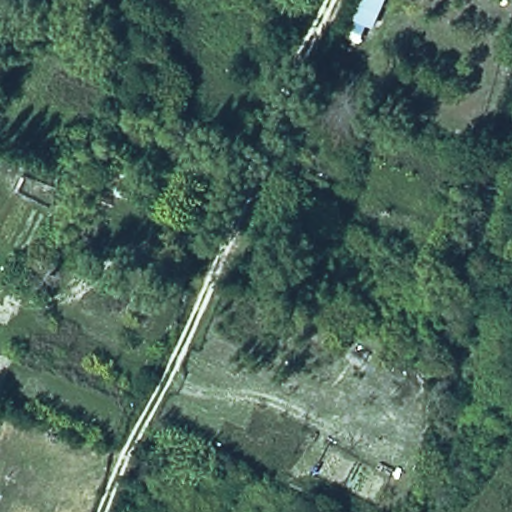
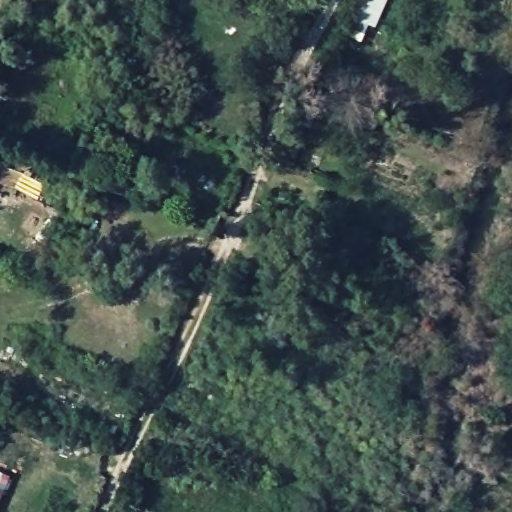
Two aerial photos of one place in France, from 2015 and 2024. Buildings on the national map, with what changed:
unchanged [(350,22),(358,0),(389,0),(376,32),(350,22)]
unchanged [(123,215),(94,202),(105,163),(139,174),(123,215)]

